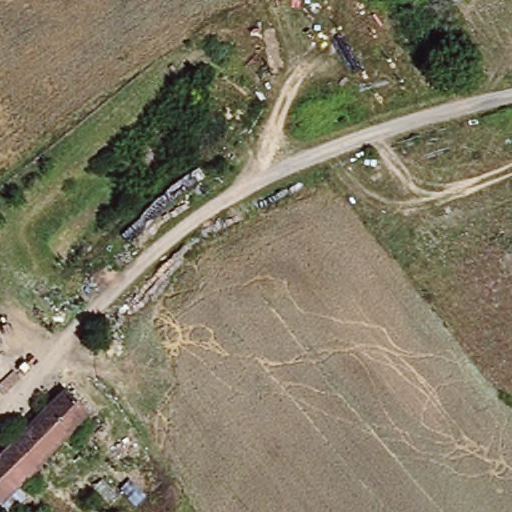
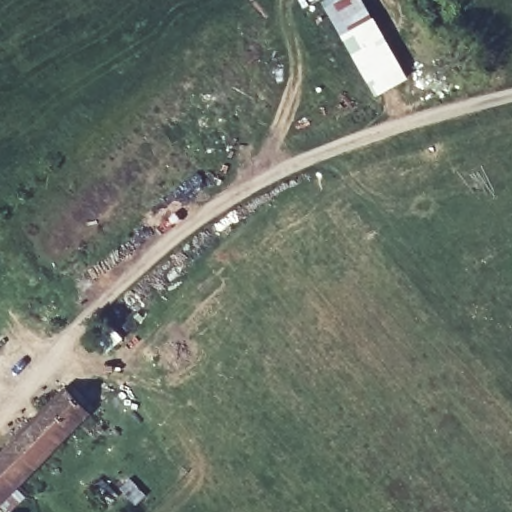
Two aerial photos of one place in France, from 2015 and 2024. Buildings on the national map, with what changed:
new [(342,0),(359,0),(377,33),(405,82),(372,101),(321,11),(342,0)]
unchanged [(49,409),(67,389),(104,427),(93,438),(78,423),(0,504),(0,461),(49,409)]

